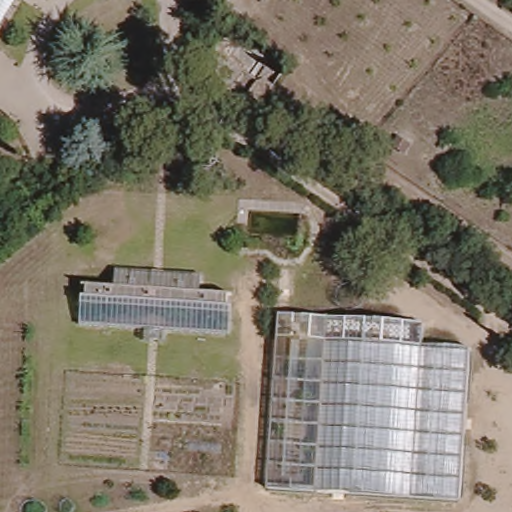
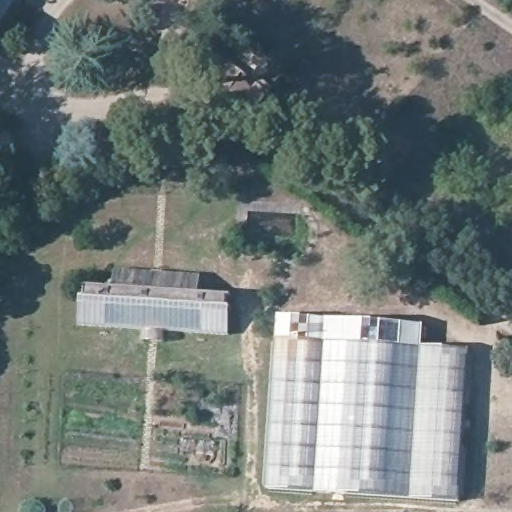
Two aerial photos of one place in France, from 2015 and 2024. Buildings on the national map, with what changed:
unchanged [(0,23),(0,0),(3,0),(12,5),(0,23)]
unchanged [(196,291),(114,288),(114,270),(197,274),(196,291)]
unchanged [(77,297),(78,286),(114,288),(196,291),(232,292),(232,303),(77,297)]
unchanged [(142,337),(143,328),(76,325),(77,297),(232,303),(231,331),(165,329),(165,338),(142,337)]
unchanged [(421,327),(420,348),(467,349),(460,499),(268,492),(273,321),(421,327)]

